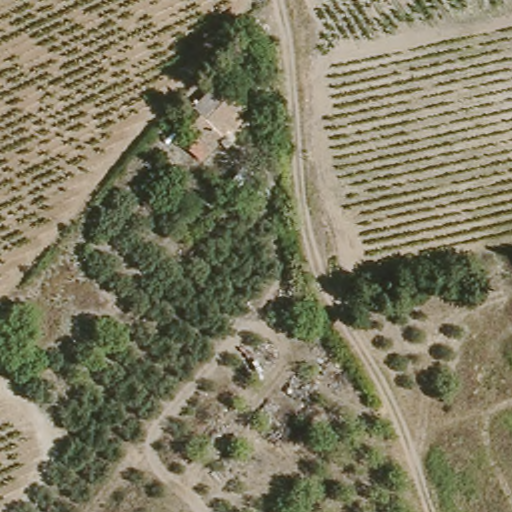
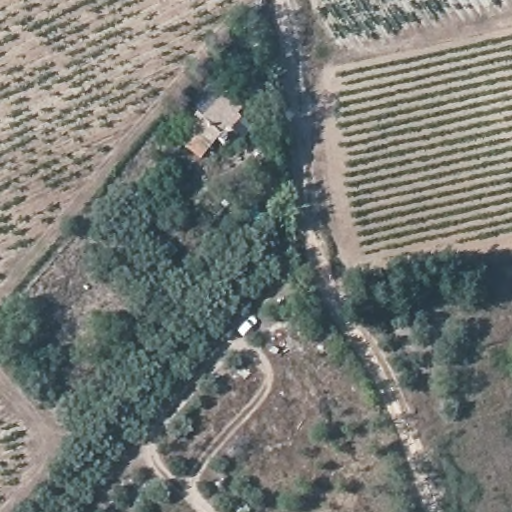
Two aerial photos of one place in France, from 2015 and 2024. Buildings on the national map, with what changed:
unchanged [(221,85),(247,113),(214,149),(193,126),(205,114),(198,106),(221,85)]

